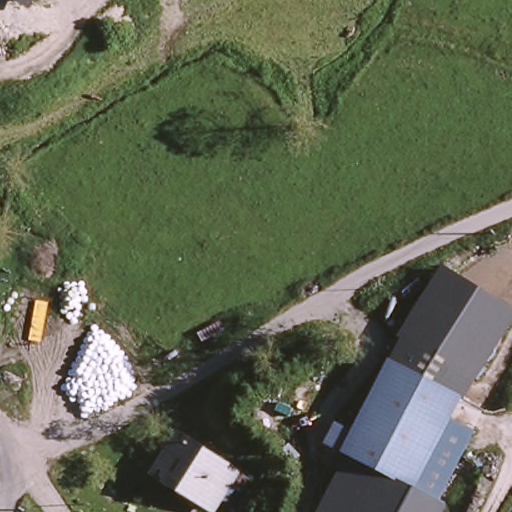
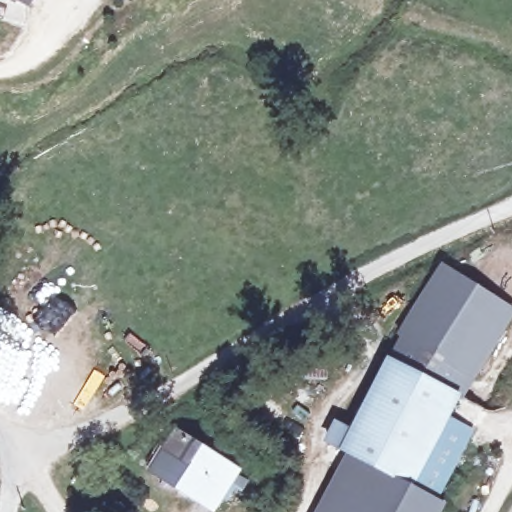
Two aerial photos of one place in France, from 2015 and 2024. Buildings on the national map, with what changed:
unchanged [(31,8),(23,2),(19,0),(34,0),(31,8)]
unchanged [(398,340),(443,267),(512,311),(512,320),(476,379),(398,340)]
unchanged [(356,439),(397,364),(455,399),(463,404),(451,426),(473,438),(437,506),(430,503),(426,512),(309,512),(339,455),(325,447),(337,427),(356,439)]
unchanged [(240,467),(218,507),(186,490),(192,481),(161,465),(180,433),(240,467)]

